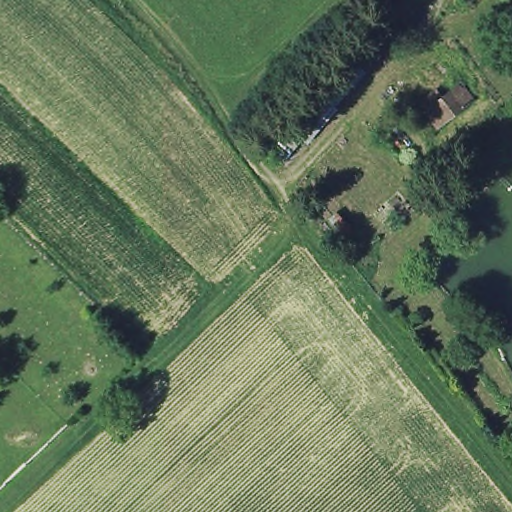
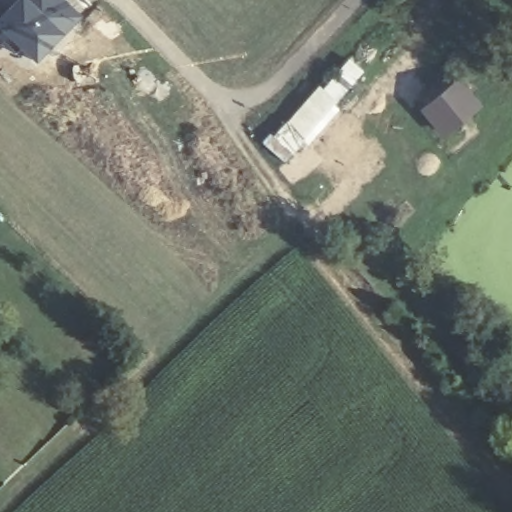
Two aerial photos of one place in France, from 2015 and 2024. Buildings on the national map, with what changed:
new [(17,0),(64,0),(84,18),(35,70),(0,40),(0,39),(0,17),(7,9),(17,0)]
new [(7,9),(0,17),(0,1),(7,9)]
unchanged [(264,140),(311,86),(321,95),(352,59),(367,73),(287,160),(264,140)]
unchanged [(437,91),(444,98),(462,85),(475,101),(440,128),(420,104),(437,91)]

